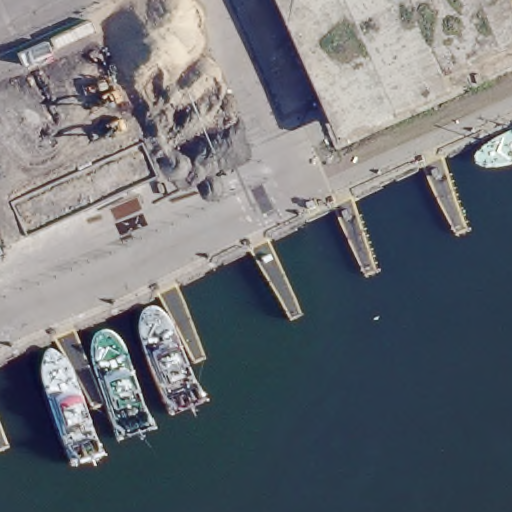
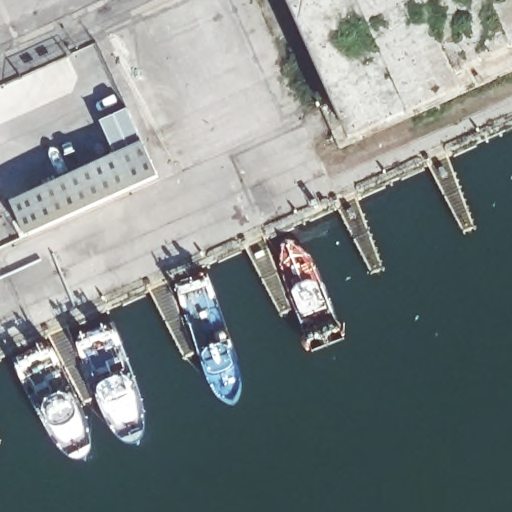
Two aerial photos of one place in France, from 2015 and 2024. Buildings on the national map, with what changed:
unchanged [(512,44),(343,121),(288,0),(512,0),(512,44)]
new [(112,160),(97,126),(125,114),(155,181),(81,215),(23,241),(6,204),(112,160)]

